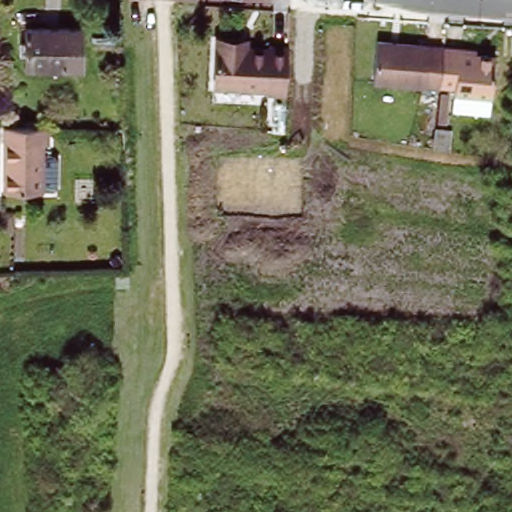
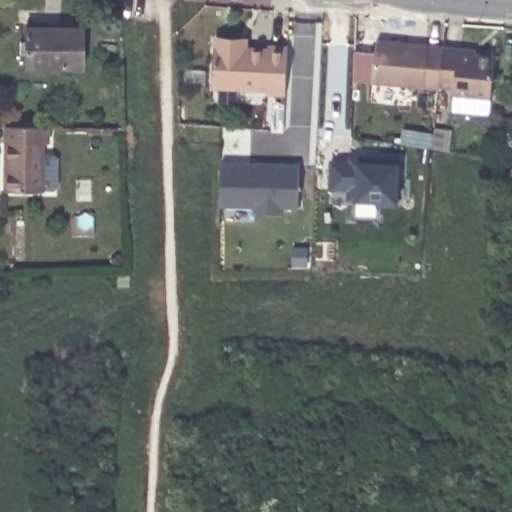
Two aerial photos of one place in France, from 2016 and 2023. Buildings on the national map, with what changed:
unchanged [(25,27),(81,29),(80,70),(25,68),(25,27)]
unchanged [(277,93),(272,92),(272,90),(217,87),(219,44),(219,37),(250,38),(250,47),(272,49),(272,45),(292,46),(292,66),(289,107),(277,106),(277,93)]
unchanged [(440,85),(440,87),(373,81),(378,40),(444,47),(440,85)]
unchanged [(455,94),(455,87),(440,85),(444,47),(461,49),(461,52),(494,55),(488,115),(465,113),(452,112),(455,94)]
unchanged [(47,144),(42,144),(42,191),(3,191),(3,127),(47,127),(47,144)]
unchanged [(436,127),(452,130),(450,151),(433,149),(436,127)]
new [(377,207),(378,202),(356,202),(348,201),(347,191),(330,191),(330,161),(356,161),(400,162),(400,202),(398,207),(377,207)]
new [(285,209),(285,213),(255,213),(255,207),(221,207),(222,162),(302,162),(302,209),(285,209)]

